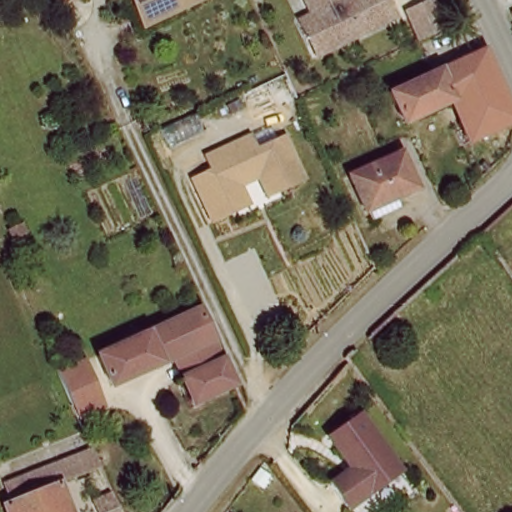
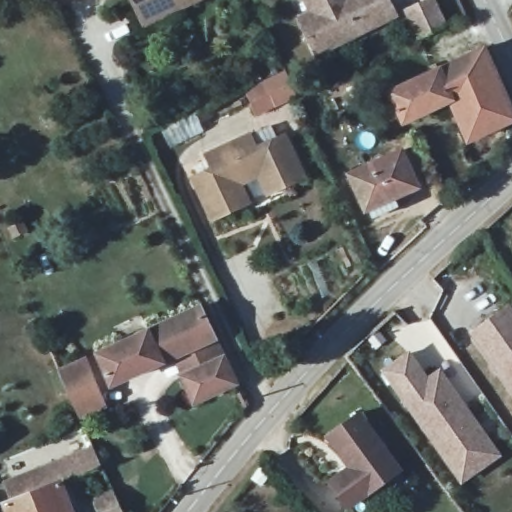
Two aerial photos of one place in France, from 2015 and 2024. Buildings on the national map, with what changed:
new [(69,0),(78,0),(70,4),(69,0)]
unchanged [(135,0),(201,0),(182,9),(147,26),(144,20),(135,0)]
unchanged [(301,28),(314,21),(303,0),(344,0),(346,4),(354,0),(387,0),(398,21),(362,39),(318,62),(312,51),(301,28)]
unchanged [(486,53),(489,60),(512,106),(512,130),(477,147),(455,107),(407,129),(394,99),(486,53)]
new [(294,62),(304,82),(284,92),(280,84),(266,90),(261,79),(274,72),(294,62)]
unchanged [(237,216),(214,226),(194,182),(213,174),(207,159),(252,138),(258,150),(287,136),(307,181),(287,191),(271,199),(265,186),(247,194),(254,208),(237,216)]
unchanged [(375,221),(370,210),(368,211),(351,177),(400,151),(417,185),(398,196),(402,207),(375,221)]
new [(512,309),(512,397),(467,334),(509,305),(512,309)]
unchanged [(185,316),(204,306),(231,364),(240,383),(198,402),(178,361),(164,326),(185,316)]
unchanged [(152,332),(164,326),(178,361),(117,390),(102,357),(152,332)]
new [(406,352),(427,378),(437,371),(500,457),(461,485),(381,372),(406,352)]
unchanged [(107,416),(80,429),(56,371),(85,361),(107,416)]
unchanged [(348,511),(330,486),(349,472),(328,442),(359,420),(398,474),(348,511)]
unchanged [(96,445),(104,464),(57,483),(69,512),(4,512),(2,507),(10,504),(2,486),(96,445)]

